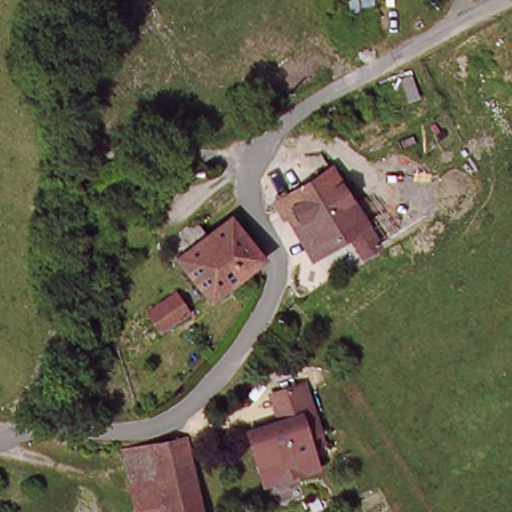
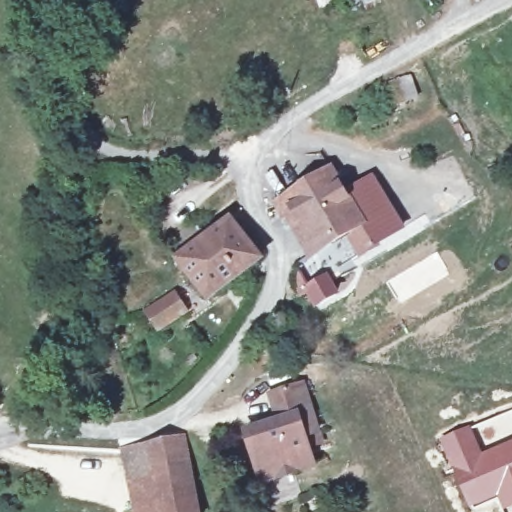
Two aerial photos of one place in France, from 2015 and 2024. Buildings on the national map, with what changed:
unchanged [(359,204),(371,194),(398,238),(363,263),(348,239),(310,268),(266,205),(333,162),(359,204)]
unchanged [(259,252),(259,258),(204,294),(178,258),(233,220),(259,252)]
unchanged [(181,313),(164,325),(156,313),(173,299),(181,313)]
unchanged [(252,466),(243,434),(274,424),(266,396),(299,386),(317,446),(304,451),(309,469),(269,481),(258,484),(252,466)]
new [(483,451),(512,439),(512,508),(503,512),(497,498),(469,509),(437,437),(469,423),(483,451)]
unchanged [(193,512),(142,512),(129,452),(136,452),(181,439),(193,512)]

